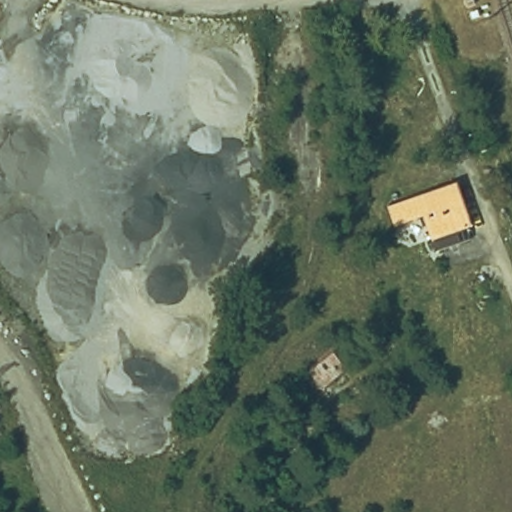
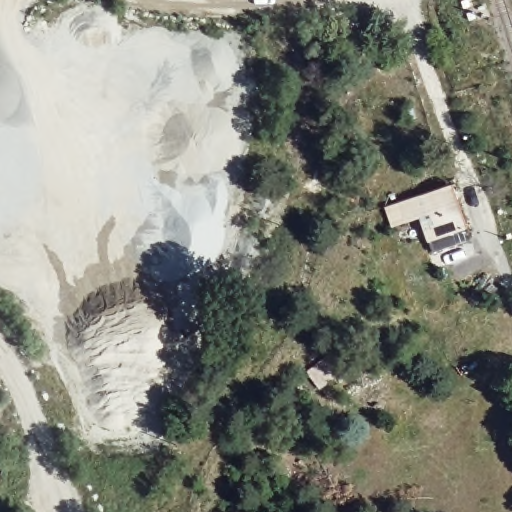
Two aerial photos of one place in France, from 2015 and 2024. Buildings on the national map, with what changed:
unchanged [(452,185),(467,229),(423,244),(415,223),(387,229),(381,207),(452,185)]

